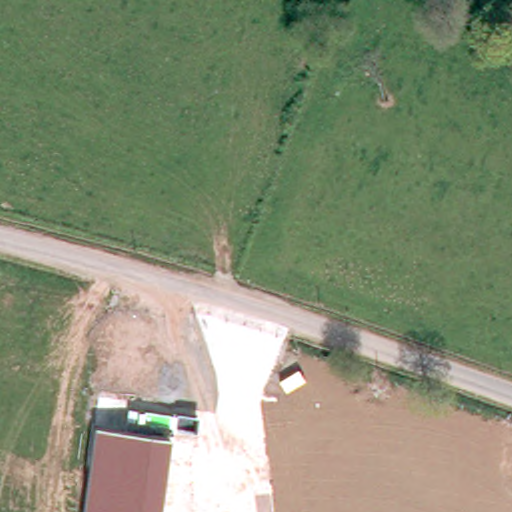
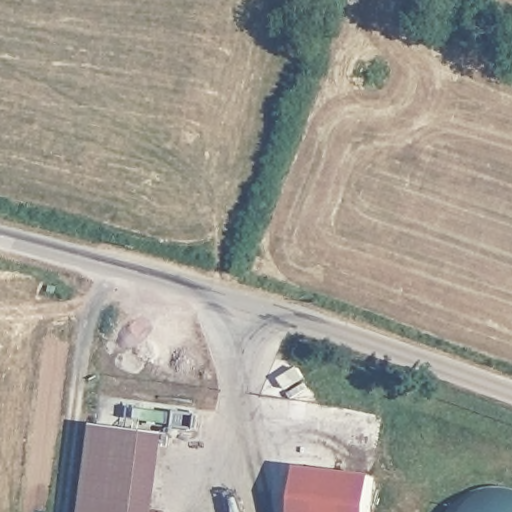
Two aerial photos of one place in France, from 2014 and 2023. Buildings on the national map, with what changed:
unchanged [(159,512),(82,512),(94,427),(169,438),(159,512)]
new [(301,469),(378,477),(374,512),(296,512),(301,469)]

